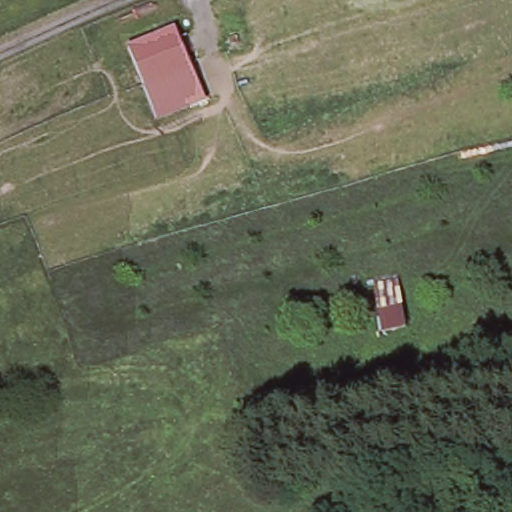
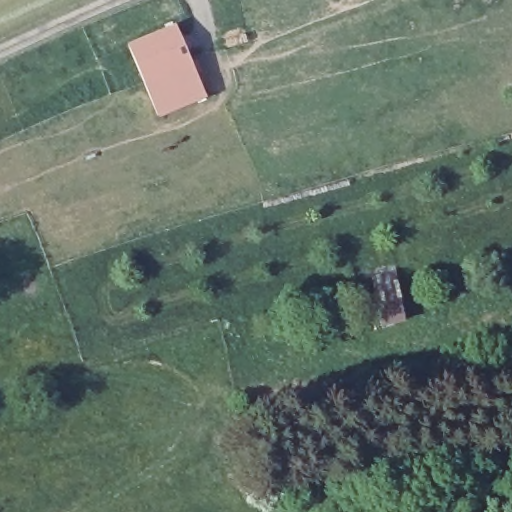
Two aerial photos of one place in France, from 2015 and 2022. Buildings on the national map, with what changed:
unchanged [(197,47),(152,65),(152,64),(138,31),(182,12),(197,47)]
unchanged [(212,82),(167,100),(152,65),(197,47),(212,82)]
unchanged [(395,272),(405,320),(382,326),(370,277),(395,272)]

